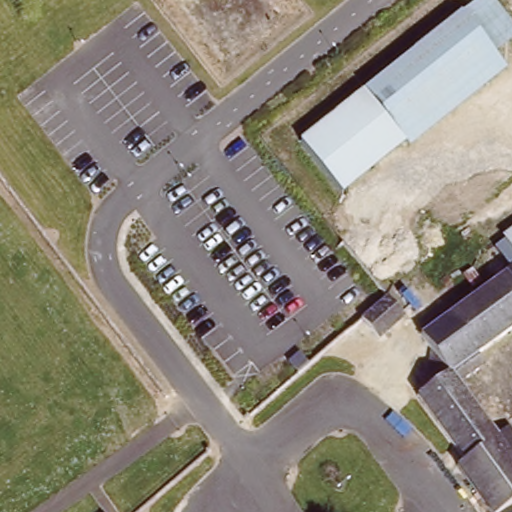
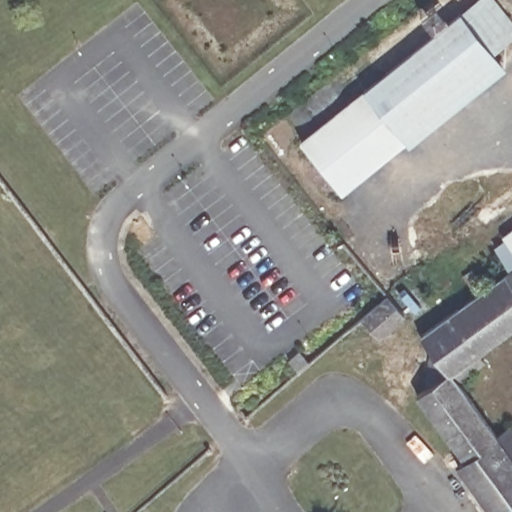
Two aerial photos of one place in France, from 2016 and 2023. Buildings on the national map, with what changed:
unchanged [(458,21),(484,0),(487,0),(512,33),(512,43),(490,60),(458,21)]
unchanged [(407,149),(364,96),(458,21),(490,60),(501,73),(407,149)]
unchanged [(341,199),(299,148),(361,98),(402,148),(341,199)]
unchanged [(507,239),(512,234),(512,268),(496,246),(507,239)]
unchanged [(461,468),(468,461),(459,450),(439,425),(426,407),(419,399),(429,390),(434,352),(424,338),(512,272),(512,334),(481,357),(488,365),(461,385),(501,438),(512,429),(512,430),(512,507),(506,512),(479,512),(460,487),(469,480),(461,468)]
unchanged [(380,341),(371,329),(364,320),(391,297),(409,318),(380,341)]

